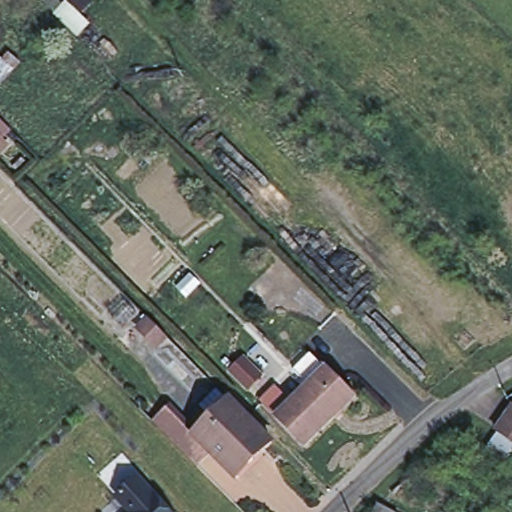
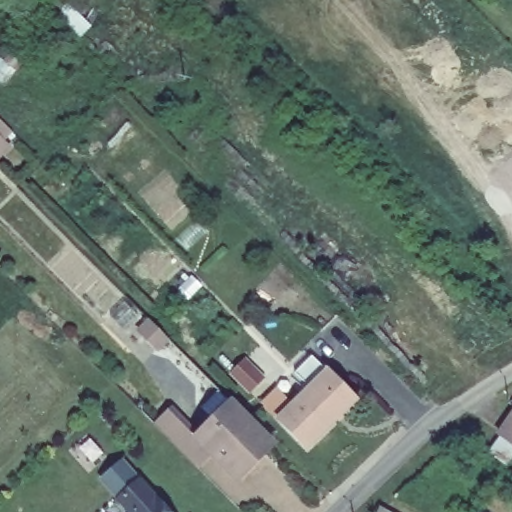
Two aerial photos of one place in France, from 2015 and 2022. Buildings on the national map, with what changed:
unchanged [(0,151),(0,133),(9,142),(0,151)]
unchanged [(157,350),(140,332),(150,321),(168,339),(157,350)]
unchanged [(342,413),(305,450),(276,420),(263,405),(290,378),(305,393),(310,388),(295,374),(312,356),(327,371),(328,371),(353,396),(356,400),(342,413)]
unchanged [(212,455),(195,437),(212,421),(231,402),(236,408),(273,445),(237,480),(212,455)]
unchanged [(168,410),(195,437),(212,455),(198,469),(153,425),(168,410)]
unchanged [(499,435),(512,415),(512,444),(499,435)]
unchanged [(126,512),(115,499),(133,481),(162,512),(126,512)]
unchanged [(385,512),(377,512),(379,508),(385,512)]

